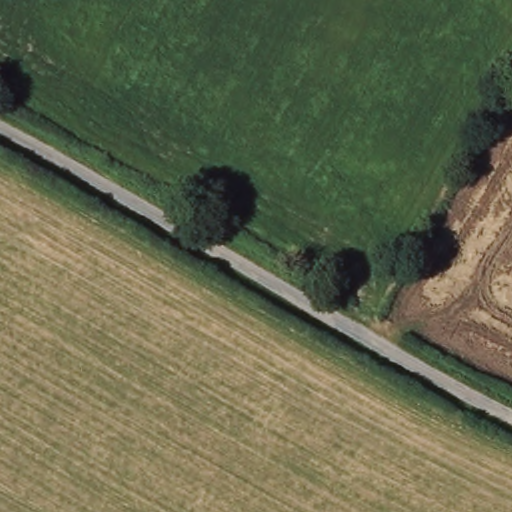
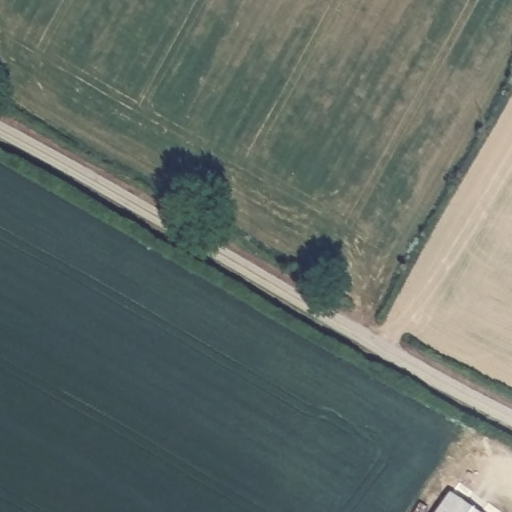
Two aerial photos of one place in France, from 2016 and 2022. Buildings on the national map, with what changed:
new [(477,512),(435,512),(449,492),(477,512)]

